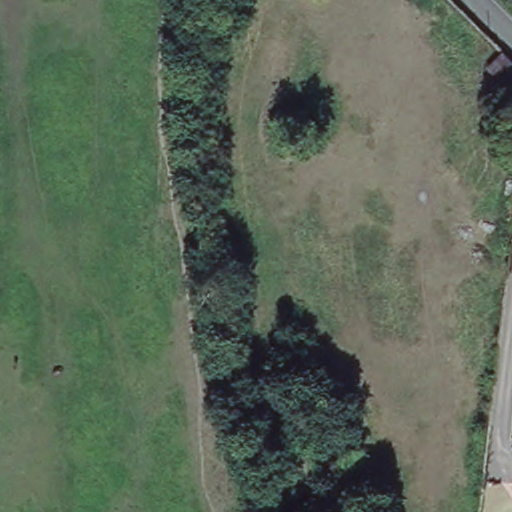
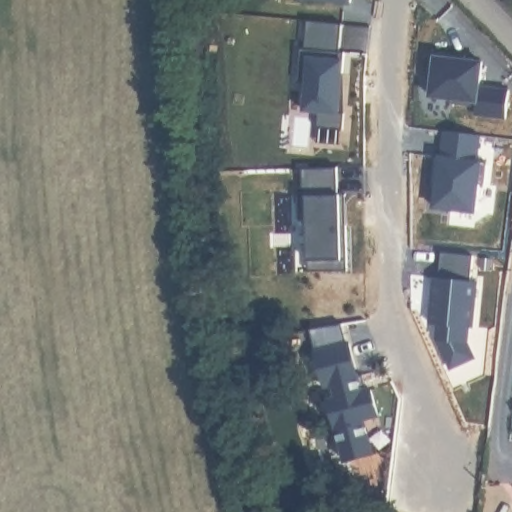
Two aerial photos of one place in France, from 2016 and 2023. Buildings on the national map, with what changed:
new [(327,0),(352,0),(352,3),(327,0)]
new [(346,23),(344,50),(349,51),(344,111),(349,111),(347,128),(321,125),(323,109),(308,108),(311,80),(302,79),(304,45),(310,45),(312,19),(346,23)]
new [(455,60),(485,64),(482,89),(511,93),(507,120),(477,117),(478,109),(453,106),(454,101),(433,98),(435,77),(430,76),(432,53),(455,55),(455,60)]
new [(468,57),(467,62),(455,60),(455,55),(468,57)]
new [(484,136),(480,162),(491,163),(488,185),(482,185),(479,218),(438,213),(442,181),(436,180),(439,161),(445,161),(449,132),(484,136)]
new [(313,258),(312,217),(304,217),(303,195),(308,195),(307,170),(342,169),(343,194),(345,194),(350,194),(351,224),(352,268),(333,269),(313,269),(313,258)]
new [(442,181),(441,195),(435,194),(436,180),(442,181)]
new [(478,258),(475,287),(481,287),(477,334),(470,333),(470,348),(476,362),(454,373),(441,344),(442,329),(434,328),(439,282),(444,283),(447,255),(478,258)]
new [(343,328),(363,381),(368,379),(371,394),(375,393),(382,419),(368,423),(376,456),(350,463),(338,417),(346,414),(342,403),(334,405),(314,332),(343,328)]

